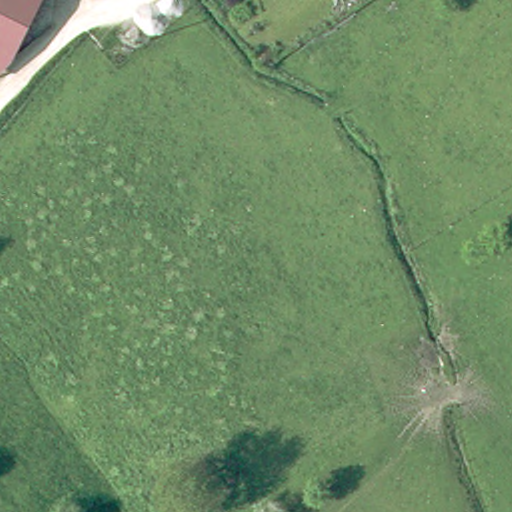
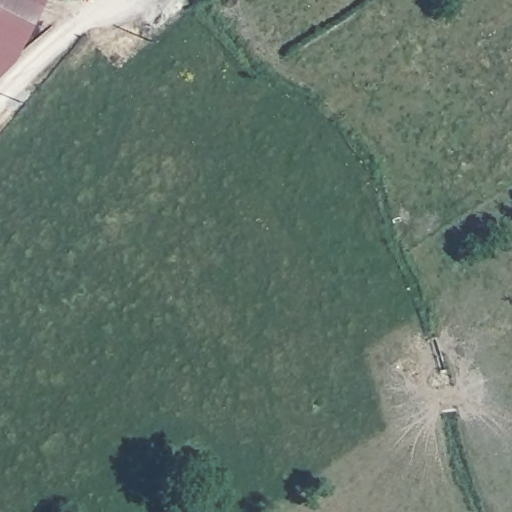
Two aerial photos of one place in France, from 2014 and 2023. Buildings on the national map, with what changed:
unchanged [(0,58),(0,0),(30,0),(0,58)]

